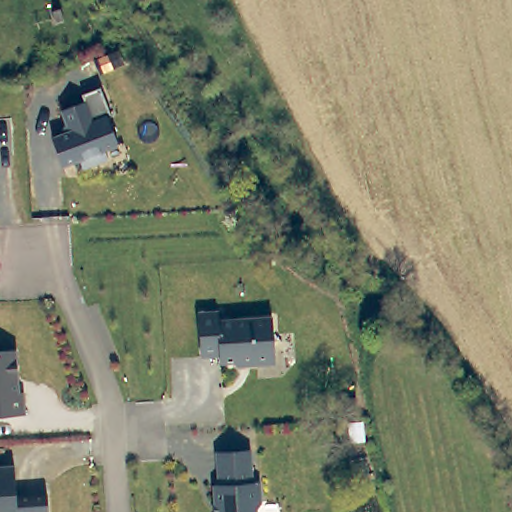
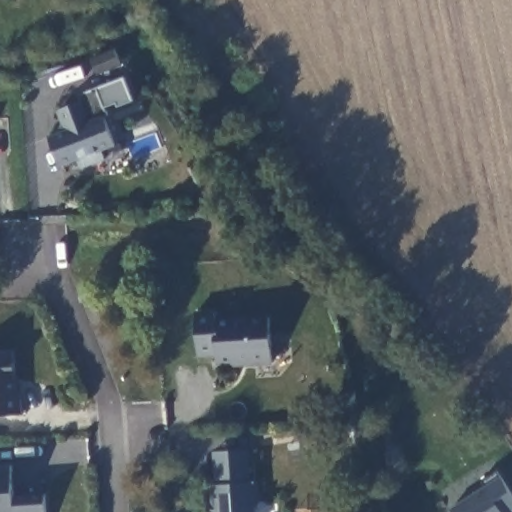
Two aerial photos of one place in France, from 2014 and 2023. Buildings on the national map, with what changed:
unchanged [(57,142),(69,137),(78,142),(83,134),(72,128),(67,114),(90,105),(87,98),(106,91),(117,120),(112,122),(123,149),(108,155),(112,164),(88,172),(84,164),(68,170),(57,142)]
unchanged [(220,312),(220,322),(274,318),(276,362),(251,363),(251,360),(221,362),(221,355),(201,357),(200,314),(220,312)]
unchanged [(16,353),(19,396),(23,396),(25,417),(0,419),(0,355),(16,353)]
unchanged [(260,482),(261,506),(258,509),(258,512),(217,512),(216,486),(220,486),(219,467),(218,452),(250,451),(251,466),(251,482),(260,482)]
unchanged [(48,497),(49,512),(0,512),(0,469),(15,468),(17,498),(48,497)]
new [(512,489),(512,512),(454,512),(451,507),(502,475),(512,489)]

